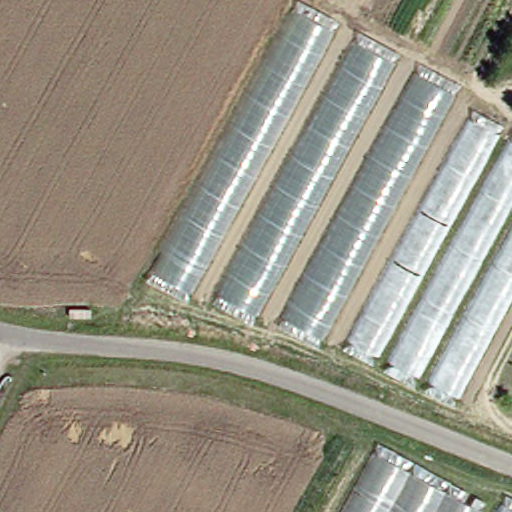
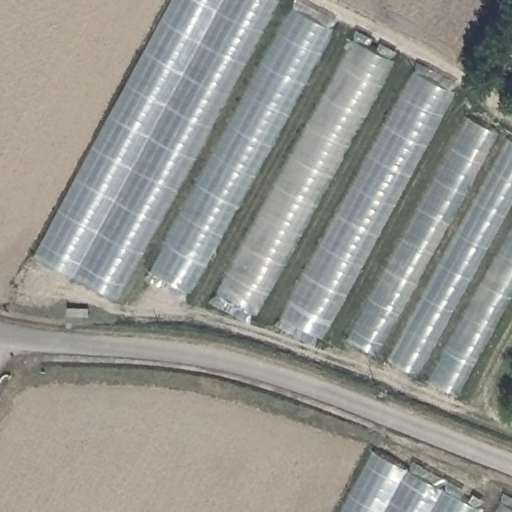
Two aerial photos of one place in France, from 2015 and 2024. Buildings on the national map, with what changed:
new [(43,259),(177,0),(276,0),(277,0),(116,298),(43,259)]
unchanged [(314,327),(301,346),(179,283),(173,295),(135,274),(284,1),(442,86),(433,98),(512,138),(512,265),(443,399),(314,327)]
unchanged [(368,444),(487,508),(493,497),(512,507),(512,512),(330,512),(368,444)]

